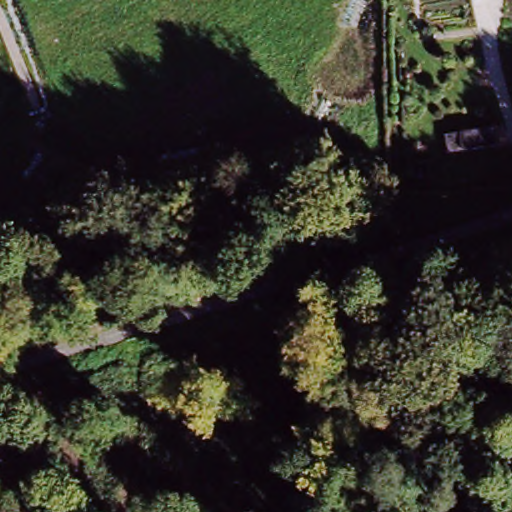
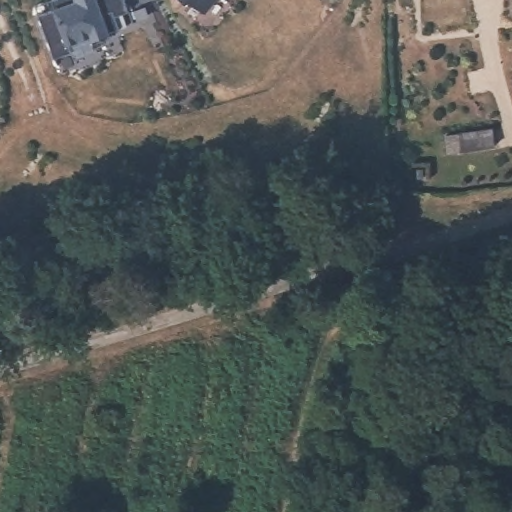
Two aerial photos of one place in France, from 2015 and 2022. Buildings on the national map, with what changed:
new [(77,4),(88,0),(122,0),(129,19),(115,25),(124,25),(113,30),(115,34),(98,41),(94,31),(73,39),(77,49),(60,55),(44,12),(40,2),(47,0),(75,0),(77,4)]
new [(204,11),(189,0),(214,0),(204,11)]
unchanged [(448,136),(493,130),(495,147),(449,154),(448,136)]

